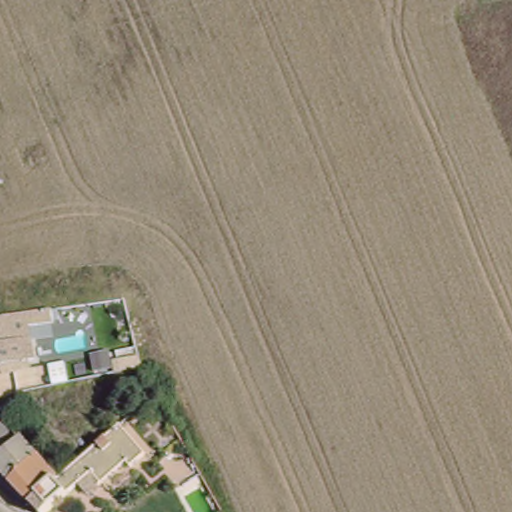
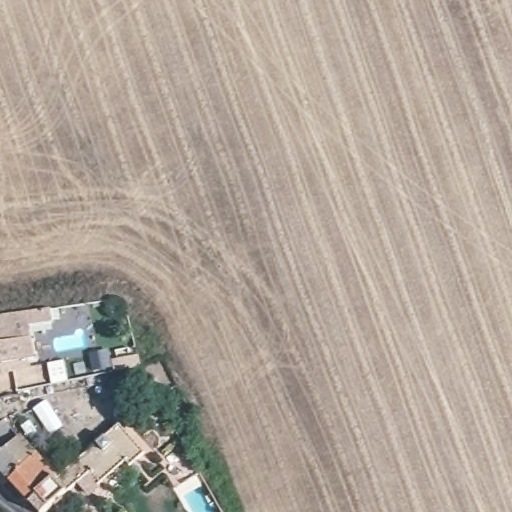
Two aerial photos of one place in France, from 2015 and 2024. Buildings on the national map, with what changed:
unchanged [(0,317),(51,309),(55,334),(31,339),(36,363),(2,369),(0,365),(0,317)]
unchanged [(0,370),(0,365),(2,369),(0,370)]
unchanged [(0,424),(3,421),(19,437),(35,454),(58,478),(71,465),(108,432),(123,419),(147,447),(128,467),(122,461),(90,493),(78,483),(68,493),(47,512),(39,512),(30,504),(10,481),(0,469),(0,424)]

